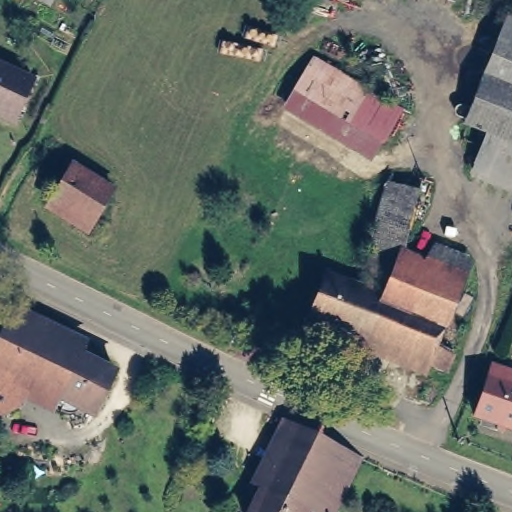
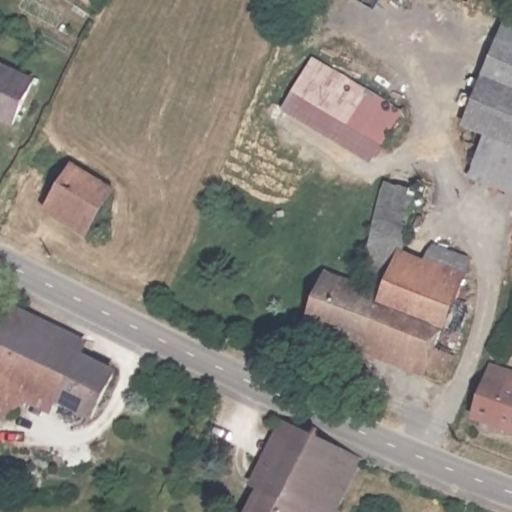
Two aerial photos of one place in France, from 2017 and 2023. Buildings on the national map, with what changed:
unchanged [(34,0),(54,0),(49,8),(34,0)]
unchanged [(507,19),(512,21),(512,91),(484,80),(507,19)]
unchanged [(369,166),(282,109),(313,58),(401,113),(369,166)]
unchanged [(0,123),(0,69),(32,84),(12,129),(0,123)]
unchanged [(512,91),(512,143),(491,134),(466,124),(484,80),(512,91)]
unchanged [(512,143),(512,188),(475,172),(491,134),(512,143)]
unchanged [(110,194),(89,226),(46,201),(67,168),(110,194)]
unchanged [(362,256),(389,178),(420,190),(396,265),(391,263),(379,290),(365,285),(362,256)]
unchanged [(365,285),(379,290),(391,263),(396,265),(455,287),(440,329),(357,295),(362,284),(365,285)]
unchanged [(357,295),(440,329),(430,356),(448,364),(442,380),(301,325),(319,278),(357,295)]
unchanged [(112,368),(91,412),(26,382),(0,369),(0,330),(6,317),(112,368)]
unchanged [(14,408),(0,401),(0,369),(26,382),(14,408)]
unchanged [(512,388),(512,434),(473,419),(489,379),(512,388)]
unchanged [(334,512),(321,512),(320,511),(319,512),(246,512),(292,428),(361,458),(334,512)]

